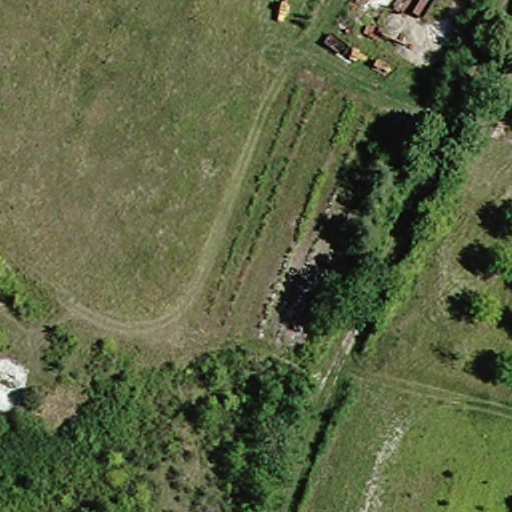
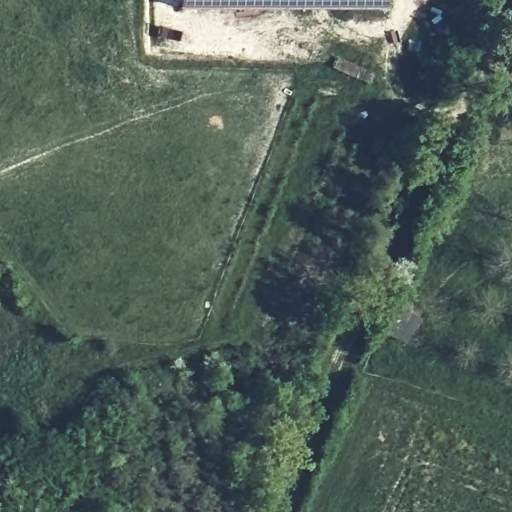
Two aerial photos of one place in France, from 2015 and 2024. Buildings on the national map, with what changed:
new [(180,0),(385,0),(385,12),(180,11),(180,0)]
unchanged [(512,20),(512,21),(511,21),(512,20)]

